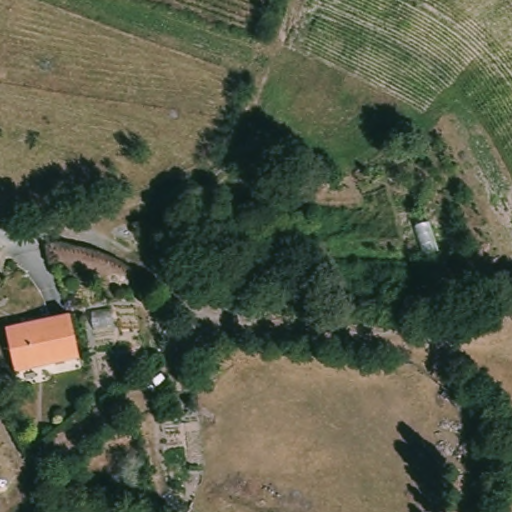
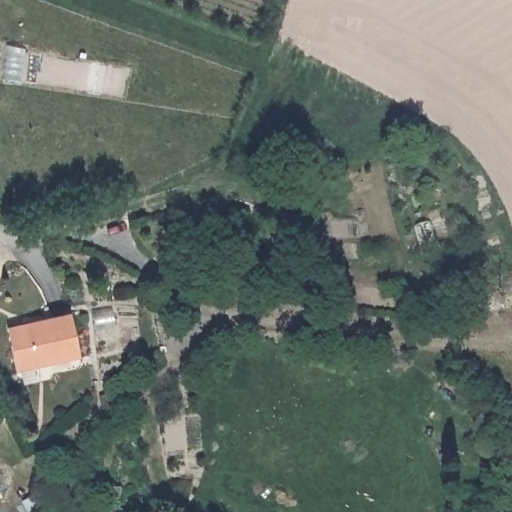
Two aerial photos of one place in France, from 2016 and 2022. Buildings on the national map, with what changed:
unchanged [(67,317),(72,361),(9,371),(3,326),(67,317)]

